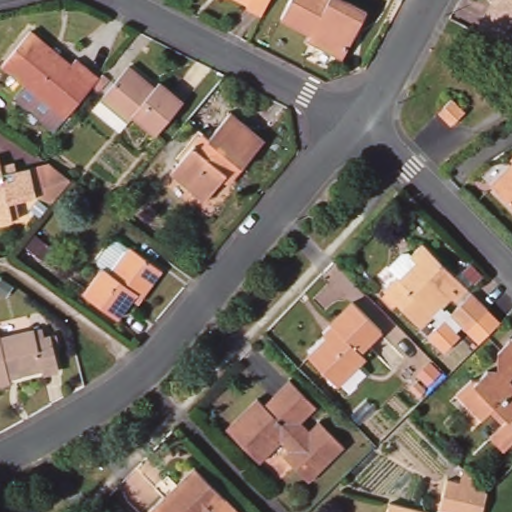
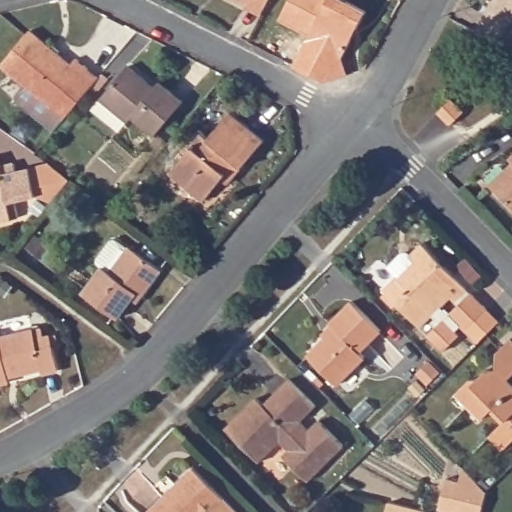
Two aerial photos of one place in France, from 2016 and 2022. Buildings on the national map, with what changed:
unchanged [(261,12),(237,0),(267,0),(261,12)]
unchanged [(289,0),(347,0),(365,10),(357,25),(352,23),(350,26),(349,39),(341,55),(307,37),(311,31),(281,15),(289,0)]
unchanged [(488,0),(512,0),(512,48),(475,30),(491,1),(488,0)]
unchanged [(0,70),(0,65),(25,35),(68,67),(73,62),(95,81),(62,121),(51,135),(10,100),(20,86),(0,70)]
unchanged [(124,65),(151,86),(156,81),(180,101),(153,133),(129,114),(124,119),(97,98),(124,65)]
unchanged [(453,102),(465,114),(453,125),(441,113),(453,102)]
unchanged [(199,138),(207,143),(228,117),(263,146),(242,172),(234,167),(203,205),(168,175),(199,138)]
unchanged [(512,158),(512,164),(509,160),(512,158)]
unchanged [(16,199),(2,202),(6,224),(0,225),(0,168),(10,165),(12,175),(27,171),(47,167),(67,182),(48,205),(34,201),(19,205),(16,199)]
unchanged [(512,209),(490,187),(512,166),(512,209)]
unchanged [(394,278),(384,268),(398,255),(404,255),(407,257),(419,245),(465,291),(452,304),(448,300),(418,330),(380,291),(394,278)]
unchanged [(100,268),(108,275),(127,249),(160,273),(140,300),(134,298),(115,322),(80,295),(100,268)]
unchanged [(469,296),(484,311),(463,332),(448,317),(469,296)]
unchanged [(333,327),(328,321),(350,300),(380,328),(357,350),(363,356),(335,383),(306,353),(333,327)]
unchanged [(32,329),(33,331),(43,329),(45,336),(50,335),(58,369),(42,373),(41,368),(7,375),(7,380),(0,382),(0,335),(32,329)]
unchanged [(512,374),(509,378),(512,381),(512,440),(505,446),(491,432),(503,420),(492,407),(483,416),(469,401),(472,398),(461,387),(474,375),(481,375),(489,366),(500,366),(498,348),(512,335),(512,374)]
unchanged [(256,396),(263,403),(287,377),(314,405),(298,420),(306,430),(316,420),(341,445),(307,478),(282,454),(288,447),(279,439),(259,460),(225,427),(256,396)]
unchanged [(239,512),(148,512),(194,467),(239,512)]
unchanged [(449,473),(469,490),(464,508),(441,502),(449,473)]
unchanged [(422,511),(422,512),(383,512),(386,502),(422,511)]

